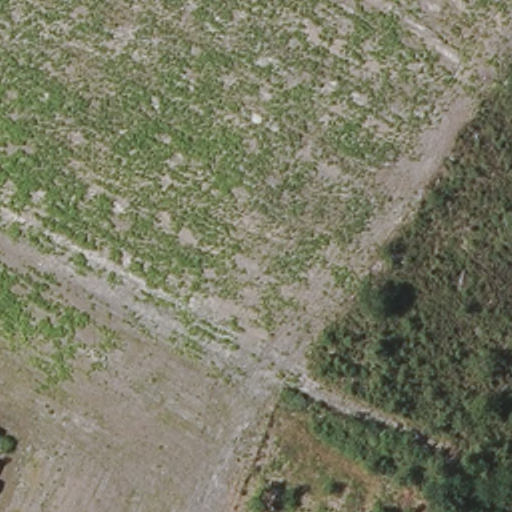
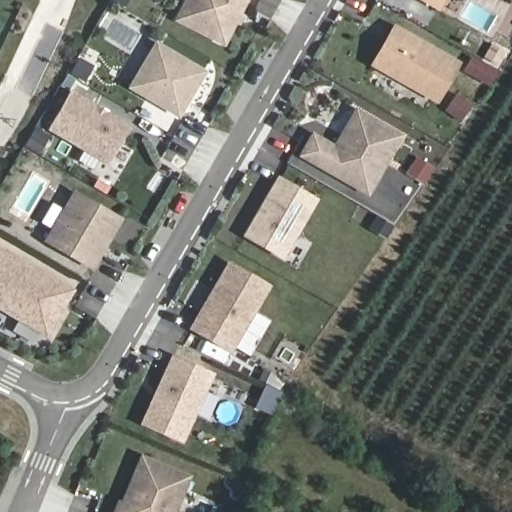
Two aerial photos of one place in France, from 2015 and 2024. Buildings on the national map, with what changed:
new [(226,46),(174,20),(184,0),(249,0),(226,46)]
new [(439,11),(419,0),(445,0),(439,11)]
new [(437,104),(370,65),(394,22),(461,62),(437,104)]
new [(180,119),(128,87),(156,40),(208,70),(180,119)]
new [(108,165),(49,130),(72,89),(132,125),(108,165)]
new [(368,197),(298,156),(312,131),(334,144),(356,106),(404,135),(368,197)]
new [(283,259),(242,234),(279,175),(319,199),(283,259)]
new [(92,271),(43,241),(74,188),(124,217),(92,271)]
new [(0,310),(0,245),(75,289),(47,336),(0,310)]
new [(231,353),(189,327),(230,260),(272,285),(231,353)]
new [(183,444),(140,424),(173,354),(215,373),(183,444)]
new [(112,512),(118,498),(122,500),(141,453),(191,475),(176,512),(112,512)]

